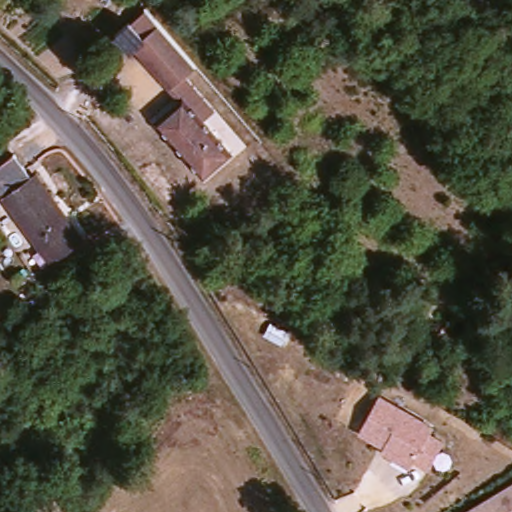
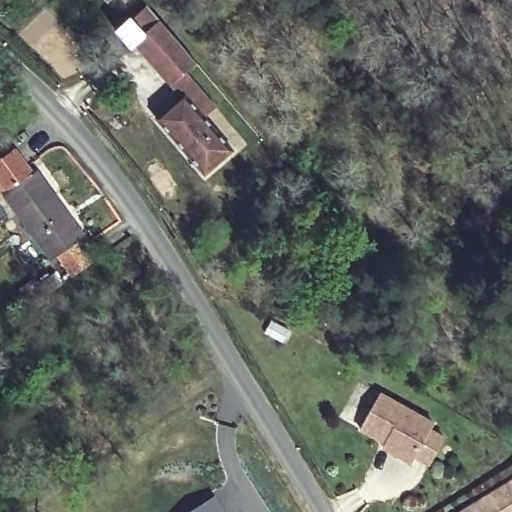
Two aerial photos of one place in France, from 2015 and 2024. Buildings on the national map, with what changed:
unchanged [(206,67),(180,89),(143,44),(138,49),(126,34),(158,8),(206,67)]
unchanged [(159,117),(188,93),(236,151),(207,175),(159,117)]
unchanged [(16,152),(34,176),(37,173),(84,236),(51,260),(4,197),(7,195),(0,186),(0,165),(16,152)]
unchanged [(417,457),(411,465),(383,450),(386,442),(363,429),(383,390),(437,420),(434,429),(448,438),(432,466),(417,457)]
unchanged [(460,512),(512,480),(512,512),(460,512)]
new [(221,512),(188,512),(212,497),(221,512)]

